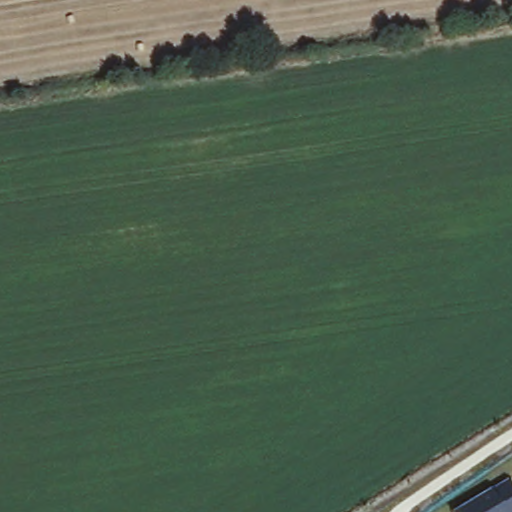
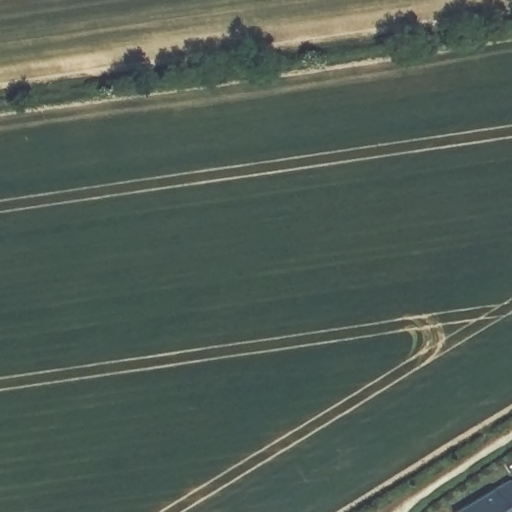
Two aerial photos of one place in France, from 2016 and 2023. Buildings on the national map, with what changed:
unchanged [(510,482),(512,485),(512,512),(458,512),(510,482)]

